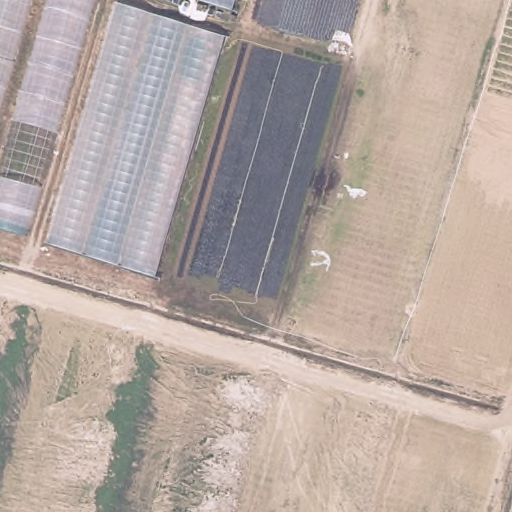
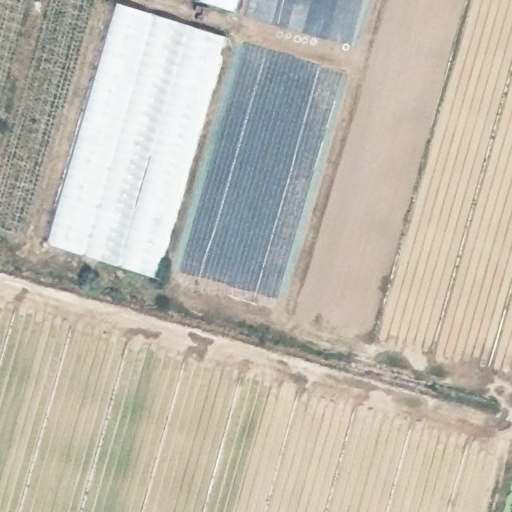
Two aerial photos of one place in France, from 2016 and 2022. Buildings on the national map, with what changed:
demolished [(30,238),(0,229),(0,0),(97,0),(30,238)]
unchanged [(237,22),(165,0),(243,0),(237,22)]
unchanged [(117,13),(226,50),(156,285),(48,254),(117,13)]

